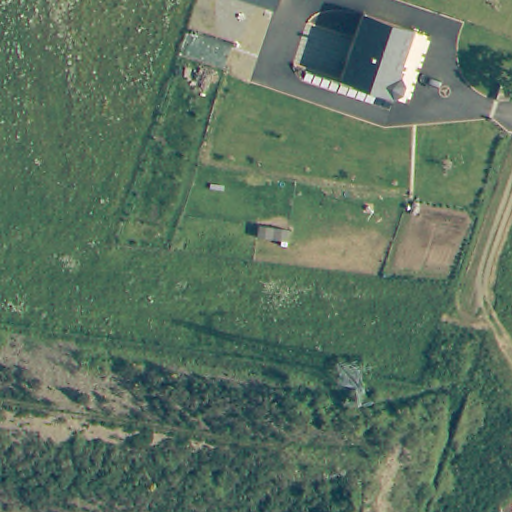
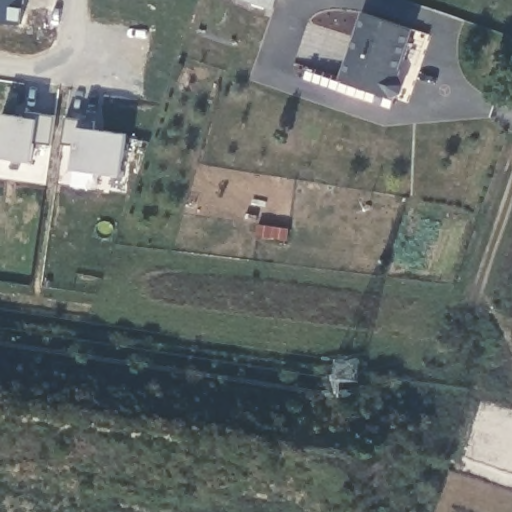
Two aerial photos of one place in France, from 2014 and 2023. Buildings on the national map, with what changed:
unchanged [(248,0),(278,0),(275,9),(248,0)]
unchanged [(415,29),(398,76),(401,77),(405,85),(402,93),(394,97),(341,79),(365,12),(415,29)]
new [(34,142),(31,161),(0,156),(0,126),(2,113),(25,117),(26,111),(56,115),(51,145),(34,142)]
new [(122,175),(71,168),(75,145),(61,144),(66,117),(96,121),(95,129),(127,134),(122,175)]

